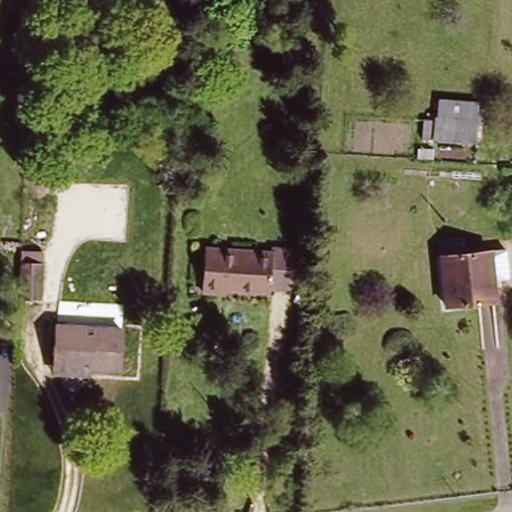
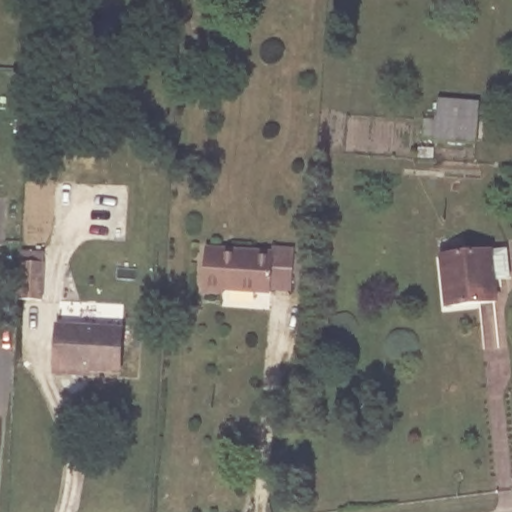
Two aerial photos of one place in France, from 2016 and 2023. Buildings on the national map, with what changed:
unchanged [(458,98),(495,107),(486,146),(436,134),(441,113),(453,116),(458,98)]
unchanged [(467,255),(493,253),(496,301),(450,304),(445,244),(466,243),(467,255)]
unchanged [(273,287),(273,293),(230,289),(229,295),(208,293),(212,248),(275,253),(275,244),(298,246),(294,288),(273,287)]
unchanged [(39,261),(36,300),(14,298),(16,258),(39,261)]
unchanged [(58,361),(60,319),(124,324),(121,365),(90,363),(89,371),(57,370),(58,361)]

